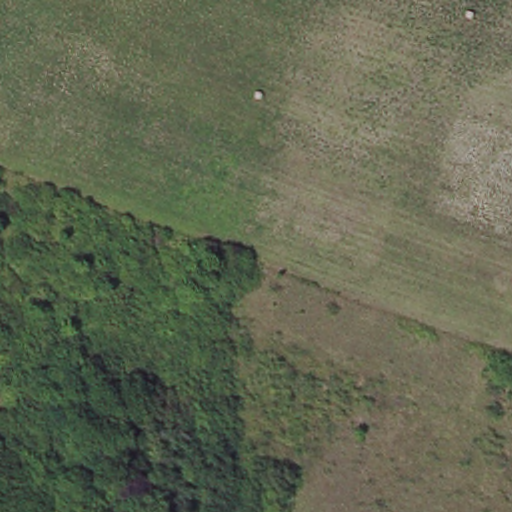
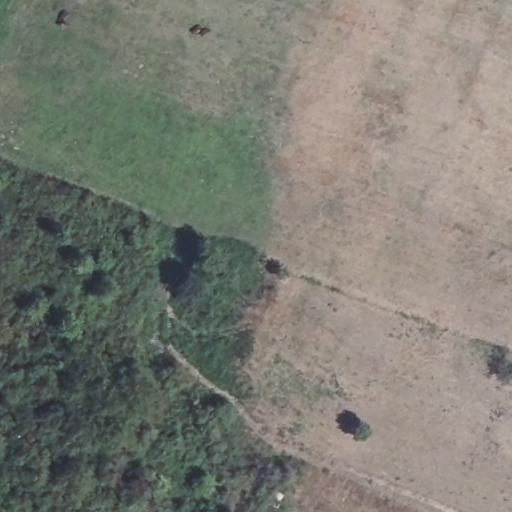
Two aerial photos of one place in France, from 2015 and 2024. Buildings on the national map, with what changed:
unchanged [(289,494),(284,508),(278,506),(275,512),(257,504),(265,484),(289,494)]

